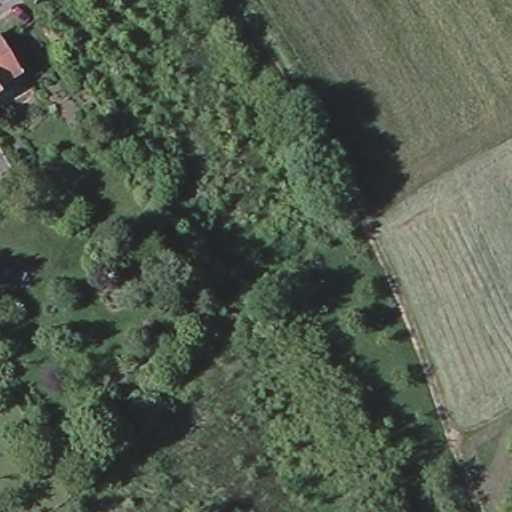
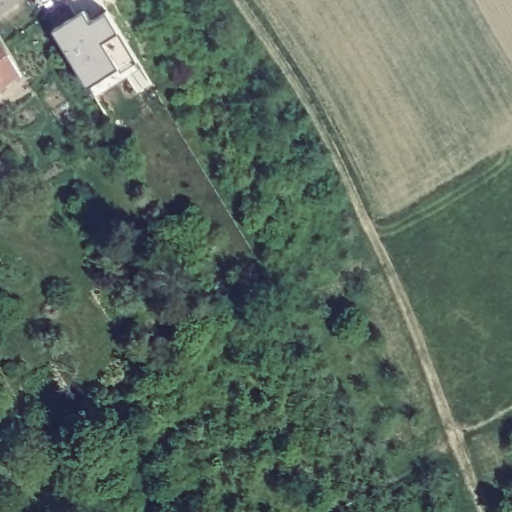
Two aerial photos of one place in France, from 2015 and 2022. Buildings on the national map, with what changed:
new [(55,30),(85,10),(91,21),(107,11),(119,31),(135,60),(120,70),(118,66),(89,86),(55,30)]
unchanged [(0,76),(0,44),(13,68),(0,76)]

